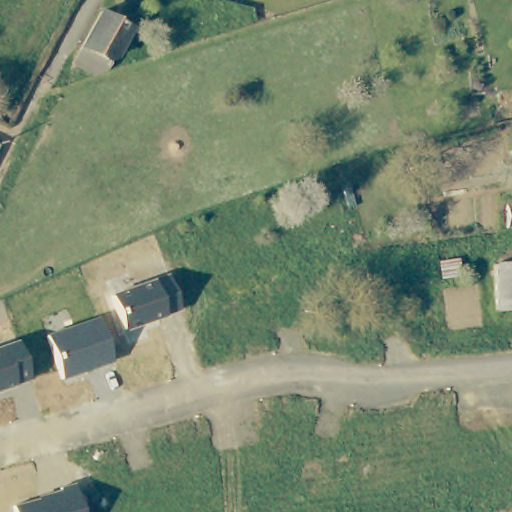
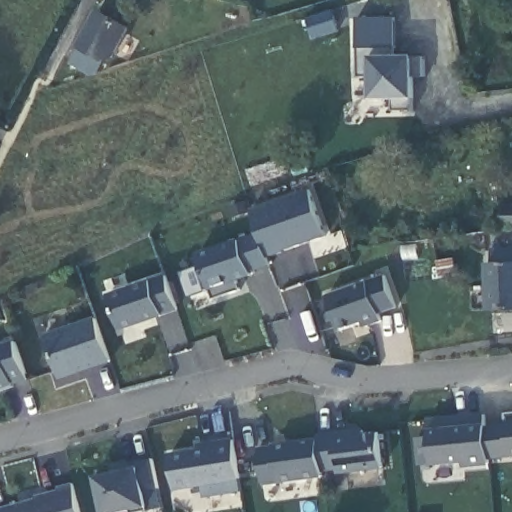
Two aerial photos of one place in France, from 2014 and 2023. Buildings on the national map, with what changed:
unchanged [(71,60),(98,6),(134,25),(113,61),(104,57),(95,71),(71,60)]
new [(398,56),(414,57),(426,58),(426,77),(415,76),(415,100),(414,111),(391,111),(392,100),(370,101),(370,77),(363,77),(362,49),(361,18),(398,17),(398,56)]
demolished [(470,76),(509,67),(512,79),(512,125),(487,131),(470,76)]
new [(259,232),(252,210),(313,190),(327,237),(284,252),(268,258),(259,232)]
unchanged [(504,195),(512,195),(512,234),(500,233),(504,195)]
new [(259,232),(271,266),(252,272),(254,277),(238,283),(241,291),(216,300),(198,254),(259,232)]
unchanged [(489,268),(508,268),(508,256),(512,256),(512,317),(489,317),(489,268)]
unchanged [(108,296),(169,275),(181,311),(122,332),(108,296)]
new [(398,308),(381,315),(383,322),(368,327),(366,321),(340,331),(327,295),(386,275),(398,308)]
unchanged [(46,335),(98,317),(113,361),(63,378),(46,335)]
unchanged [(17,339),(31,378),(0,390),(0,345),(17,339)]
new [(415,438),(430,437),(430,430),(430,417),(486,413),(488,424),(509,421),(508,415),(512,414),(512,457),(490,459),(490,466),(465,467),(464,463),(433,466),(419,466),(415,438)]
new [(339,474),(339,470),(322,472),(317,435),(364,430),(364,432),(381,431),(385,469),(339,474)]
new [(242,492),(205,497),(203,487),(176,491),(170,454),(200,448),(198,442),(234,438),(242,492)]
new [(322,477),(277,483),(262,485),(258,448),(318,442),(322,472),(322,477)]
new [(147,508),(129,512),(105,512),(96,477),(117,472),(116,467),(153,459),(162,507),(147,508)]
unchanged [(39,501),(38,498),(60,492),(60,488),(76,483),(83,512),(13,512),(12,508),(39,501)]

